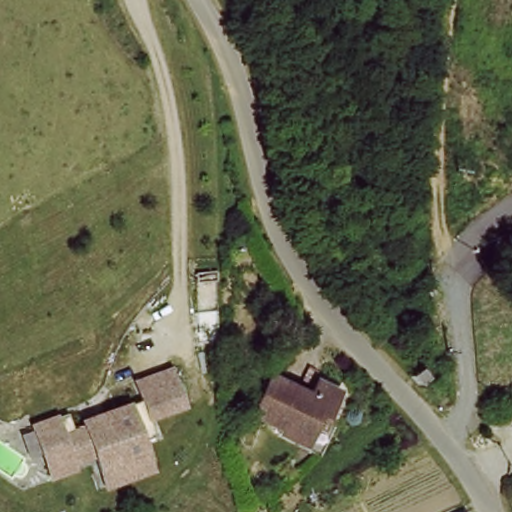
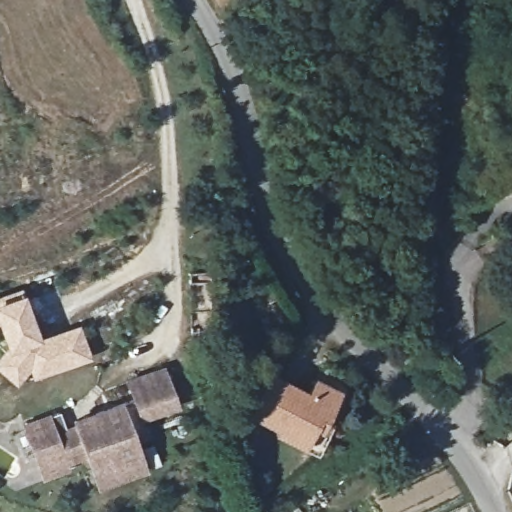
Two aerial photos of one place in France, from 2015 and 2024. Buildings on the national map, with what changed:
new [(23,289),(25,294),(39,336),(78,324),(91,358),(33,380),(30,370),(16,385),(0,371),(0,353),(7,345),(0,327),(0,297),(23,289)]
unchanged [(99,490),(87,458),(65,466),(67,472),(43,481),(36,461),(25,430),(60,417),(66,434),(77,430),(75,425),(95,418),(135,403),(129,385),(163,373),(176,409),(143,421),(149,439),(134,444),(140,460),(145,473),(120,482),(99,490)]
unchanged [(314,431),(307,446),(251,420),(269,381),(310,400),(316,386),(338,396),(324,426),(320,434),(314,431)]

